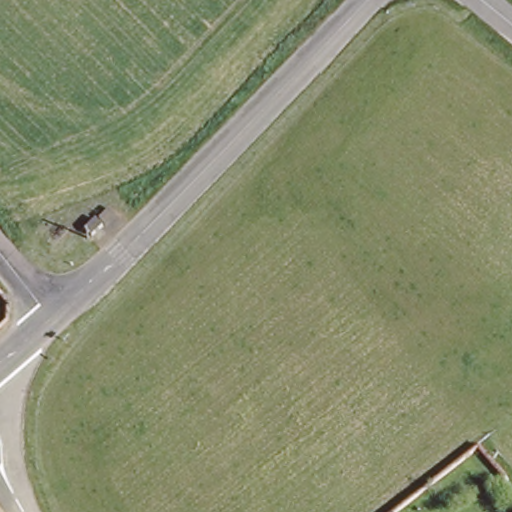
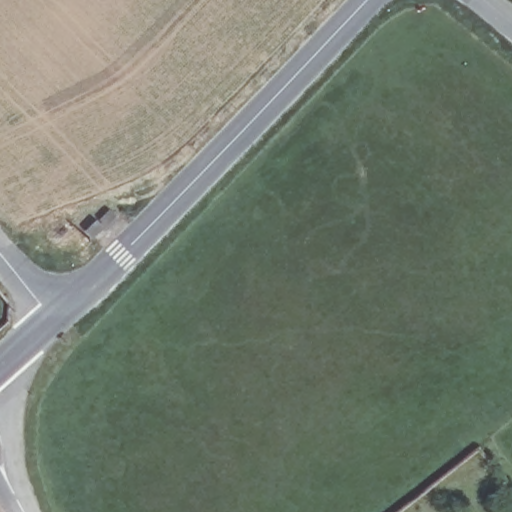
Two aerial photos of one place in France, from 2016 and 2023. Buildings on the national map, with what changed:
unchanged [(111,207),(124,216),(100,247),(81,233),(111,207)]

